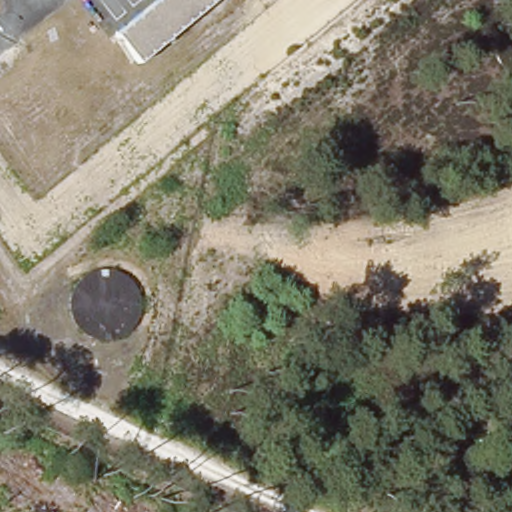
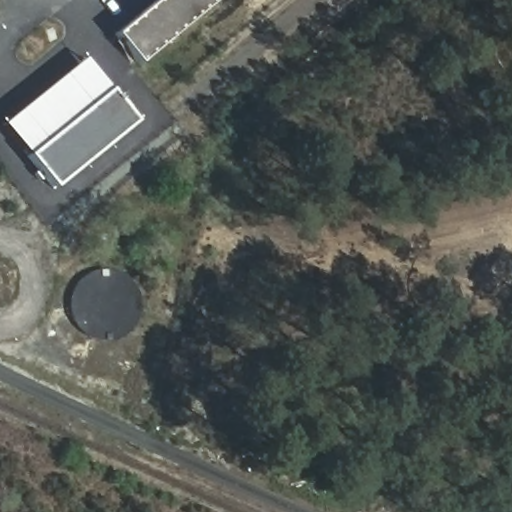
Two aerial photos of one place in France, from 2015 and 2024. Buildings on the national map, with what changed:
unchanged [(228,0),(230,2),(133,80),(105,40),(154,0),(228,0)]
new [(51,187),(1,125),(84,61),(106,86),(114,83),(141,114),(51,187)]

